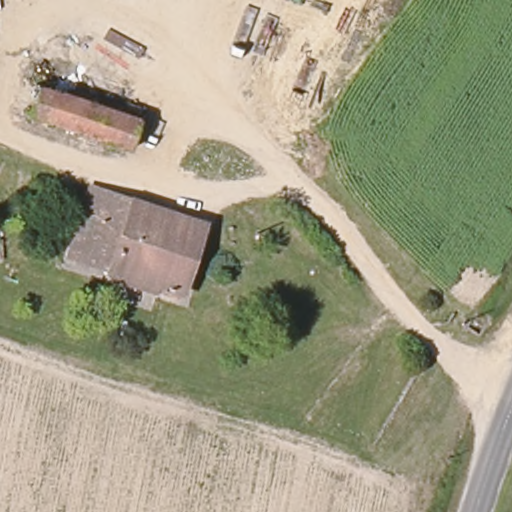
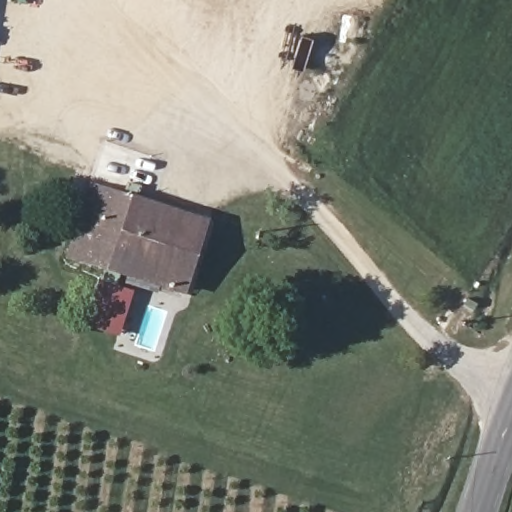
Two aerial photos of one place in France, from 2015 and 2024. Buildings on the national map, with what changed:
demolished [(136,151),(34,114),(44,85),(146,124),(136,151)]
unchanged [(79,256),(81,246),(86,230),(105,237),(111,213),(93,209),(99,186),(212,223),(192,293),(91,260),(79,256)]

